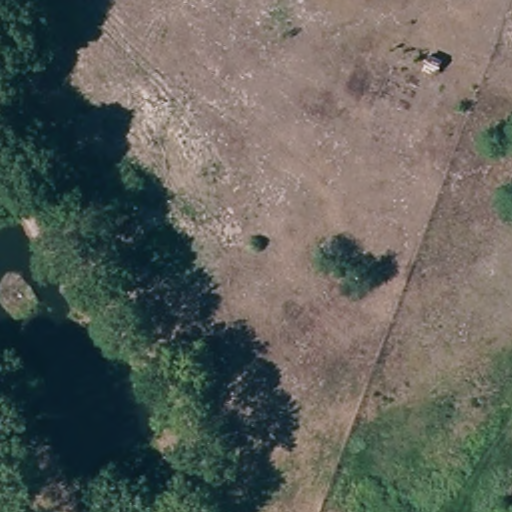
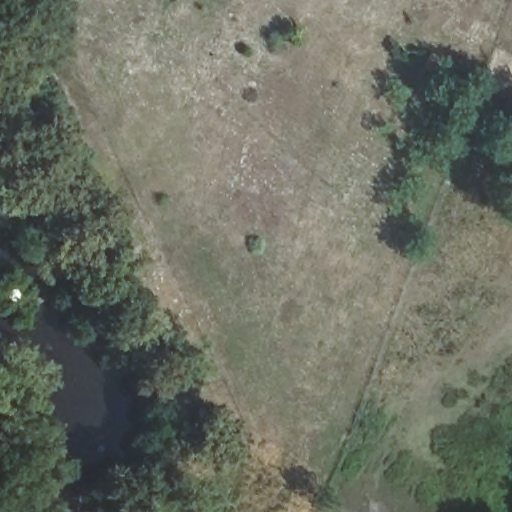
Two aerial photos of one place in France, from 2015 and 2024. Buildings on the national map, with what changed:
[]

